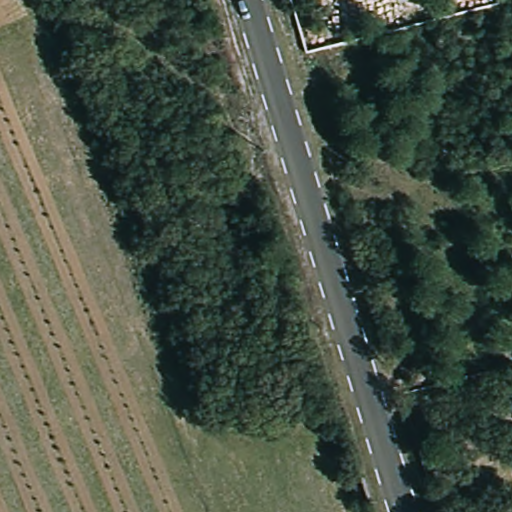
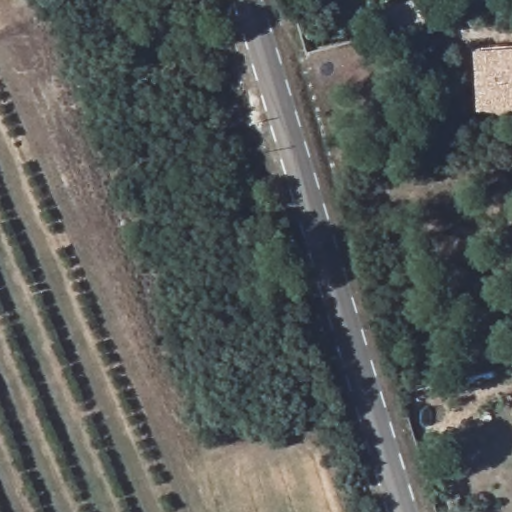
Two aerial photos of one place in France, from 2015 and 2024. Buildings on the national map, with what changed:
new [(384,34),(377,9),(409,0),(417,0),(423,24),(384,34)]
new [(473,49),(512,47),(512,110),(476,112),(473,49)]

